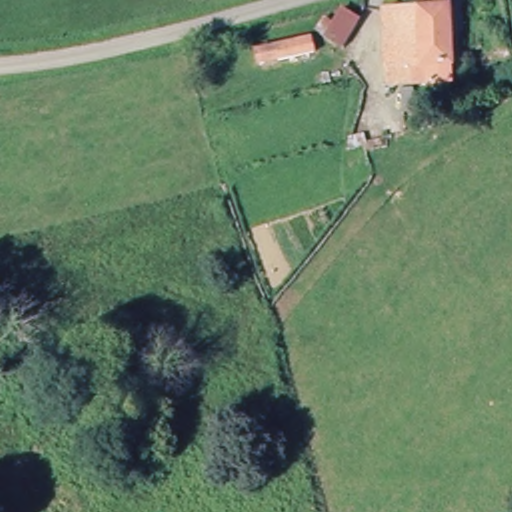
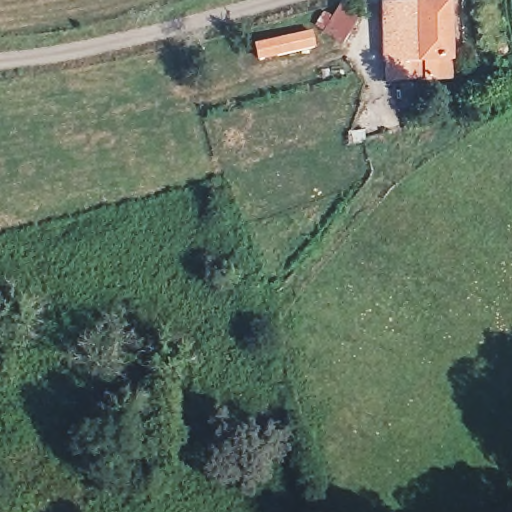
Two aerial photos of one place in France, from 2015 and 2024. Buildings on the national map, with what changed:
unchanged [(389,15),(403,14),(401,0),(445,0),(452,72),(436,73),(427,74),(427,87),(387,90),(383,48),(389,15)]
unchanged [(340,41),(326,35),(340,5),(353,10),(340,41)]
unchanged [(261,48),(308,35),(312,51),(267,64),(261,48)]

